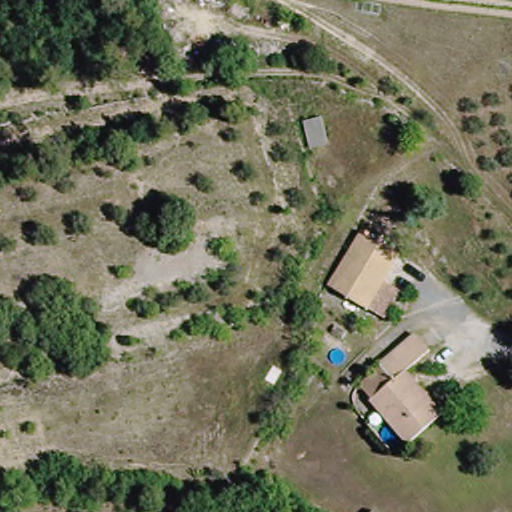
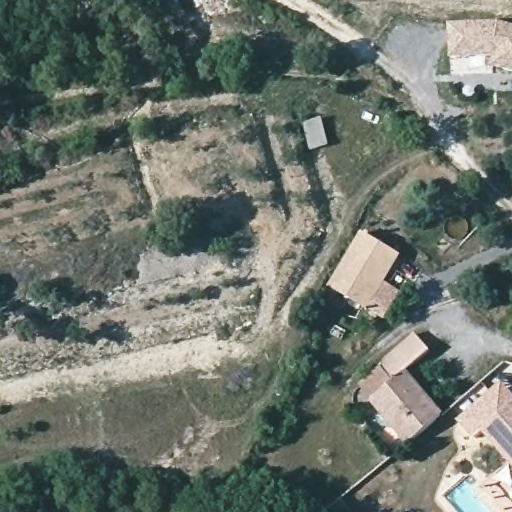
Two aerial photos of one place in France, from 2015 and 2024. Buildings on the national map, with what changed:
new [(512,32),(512,75),(498,70),(496,78),(456,78),(455,29),(505,29),(512,32)]
unchanged [(318,108),(325,133),(308,137),(300,112),(318,108)]
unchanged [(405,252),(372,312),(335,292),(365,232),(405,252)]
unchanged [(429,359),(407,377),(438,420),(403,451),(370,406),(392,388),(378,368),(415,340),(429,359)]
new [(512,465),(483,432),(475,442),(457,422),(502,384),(512,393),(512,465)]

